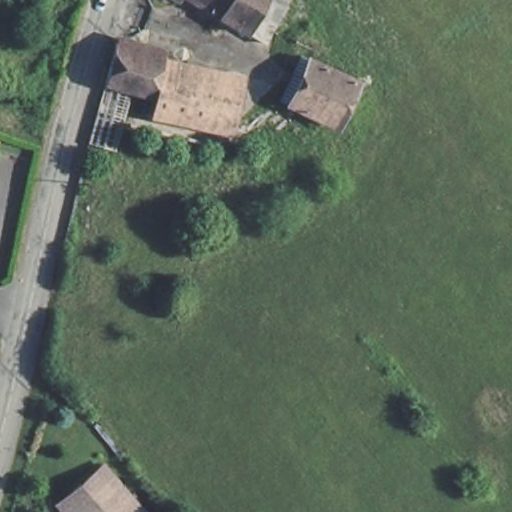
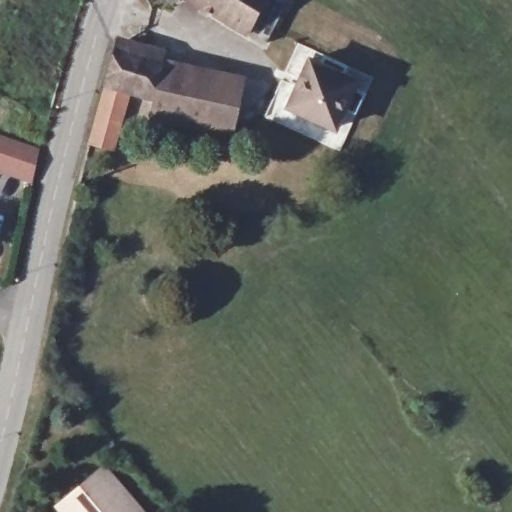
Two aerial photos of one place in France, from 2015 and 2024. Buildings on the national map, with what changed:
unchanged [(263,39),(204,0),(286,0),(271,26),(263,39)]
unchanged [(226,115),(204,108),(196,140),(147,126),(155,95),(130,87),(122,118),(115,141),(96,137),(108,94),(121,38),(216,69),(215,73),(236,80),(226,115)]
unchanged [(353,79),(334,122),(288,103),(307,59),(353,79)]
new [(0,135),(38,149),(31,183),(0,172),(0,135)]
unchanged [(58,501),(103,462),(144,512),(67,512),(58,501)]

